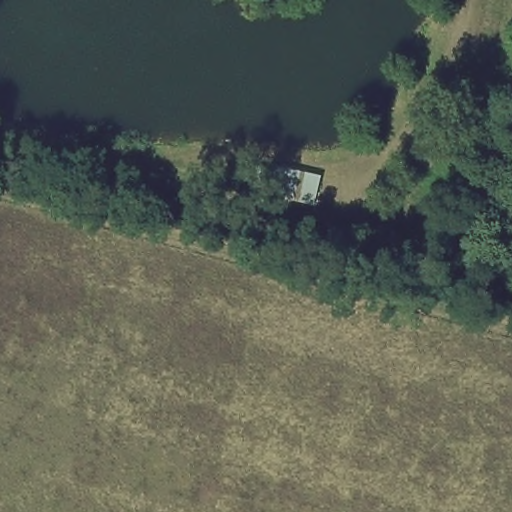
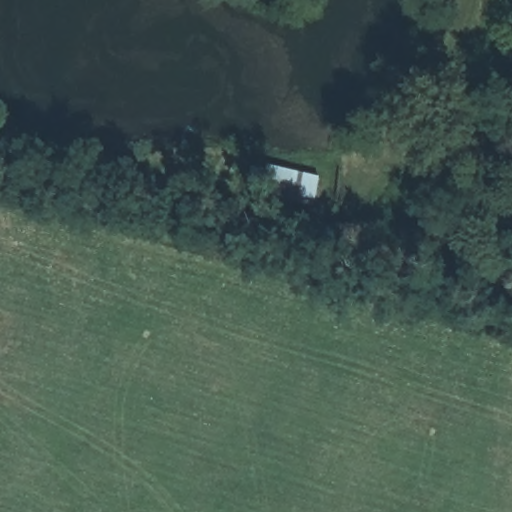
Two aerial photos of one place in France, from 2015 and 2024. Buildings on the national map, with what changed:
unchanged [(315,210),(248,193),(254,166),(319,181),(315,210)]

